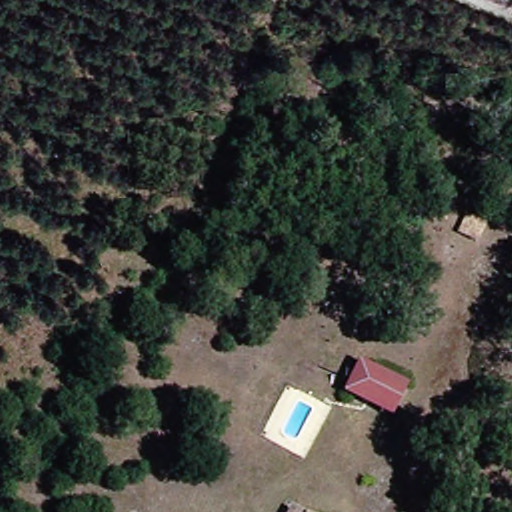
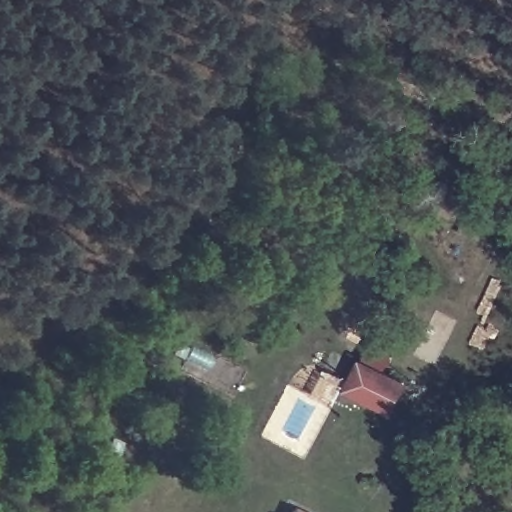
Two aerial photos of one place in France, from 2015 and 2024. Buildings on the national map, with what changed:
unchanged [(490,219),(479,247),(456,237),(467,210),(490,219)]
unchanged [(402,387),(384,415),(350,398),(367,368),(402,387)]
unchanged [(288,512),(283,512),(284,510),(288,512)]

